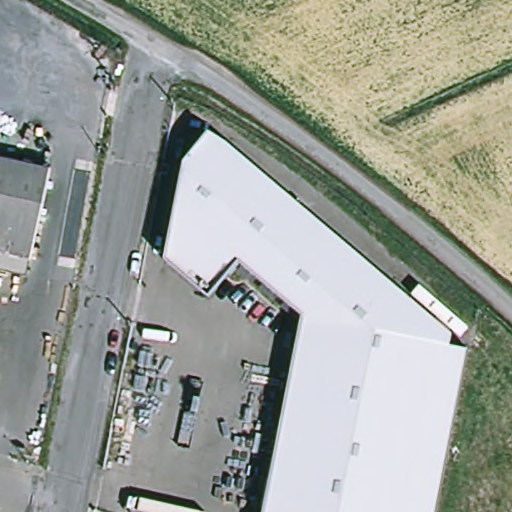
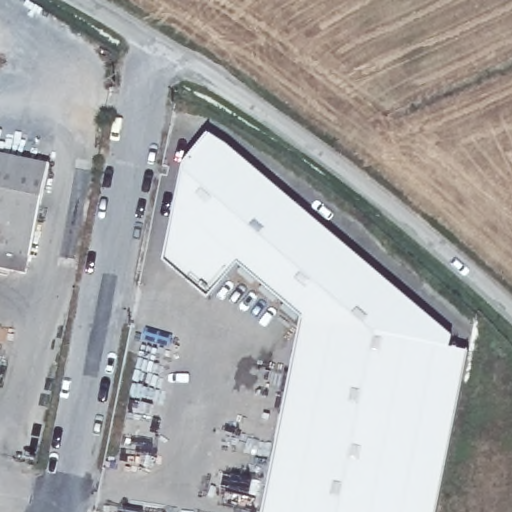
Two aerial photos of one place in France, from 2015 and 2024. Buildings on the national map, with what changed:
unchanged [(209,136),(227,150),(232,144),(449,337),(448,349),(466,352),(435,512),(267,512),(311,317),(250,263),(239,275),(165,264),(183,163),(209,136)]
unchanged [(0,250),(0,153),(49,163),(32,257),(0,250)]
unchanged [(211,304),(165,264),(239,275),(211,304)]

